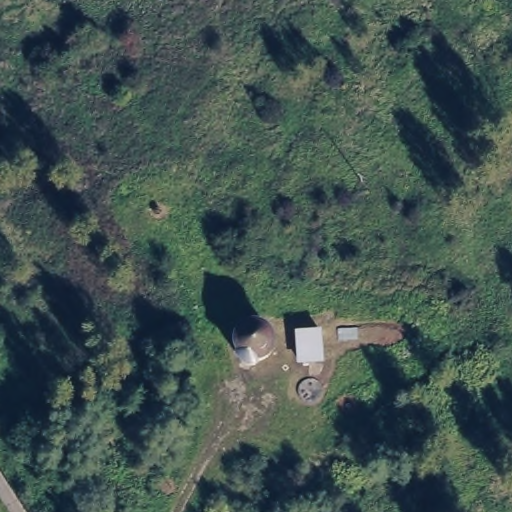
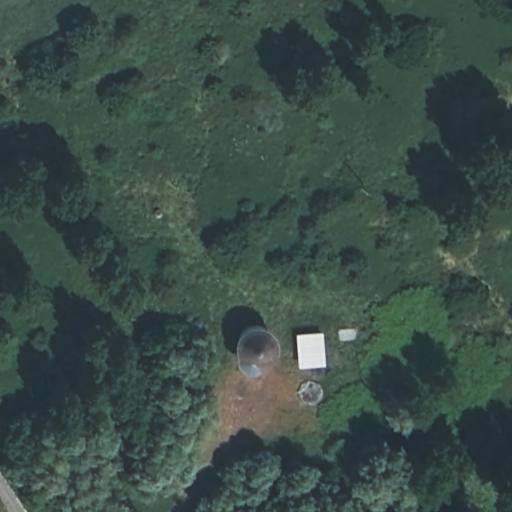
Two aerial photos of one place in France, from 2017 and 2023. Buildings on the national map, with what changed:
unchanged [(269,356),(267,360),(264,363),(262,366),(259,368),(256,370),(252,371),(250,372),(246,372),(242,372),(237,370),(234,367),(230,363),(229,358),(228,354),(229,349),(237,335),(239,332),(245,329),(247,328),(252,327),(257,328),(263,331),(265,334),(268,337),(270,341),(272,345),(272,349),(270,351),(269,356)]
unchanged [(321,372),(294,371),(291,337),(320,336),(321,372)]

